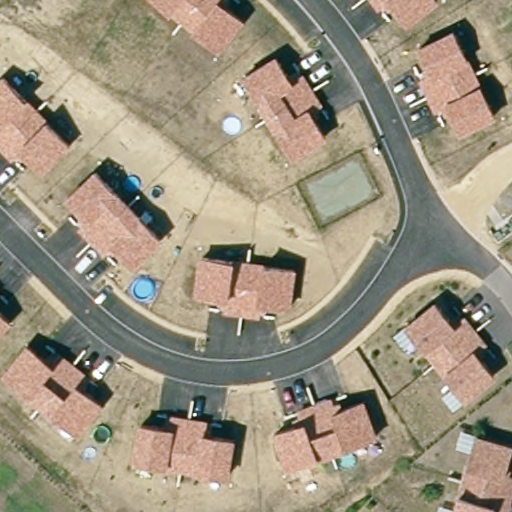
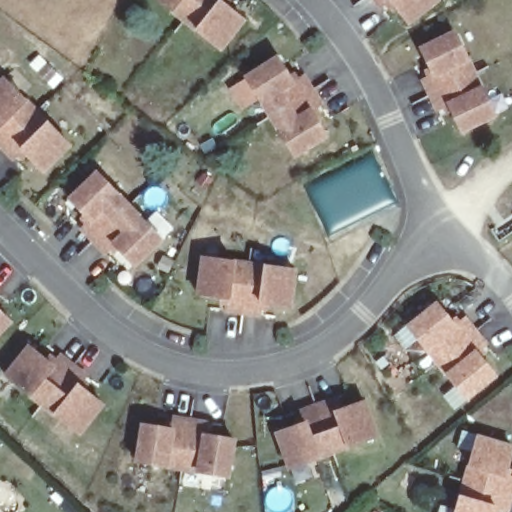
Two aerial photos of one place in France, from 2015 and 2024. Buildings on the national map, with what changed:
unchanged [(244,20),(222,48),(157,0),(220,0),(244,20)]
unchanged [(378,10),(371,0),(388,0),(378,10)]
unchanged [(439,3),(406,26),(390,0),(436,0),(439,3)]
unchanged [(496,117),(459,133),(445,104),(434,112),(420,79),(431,72),(419,46),(453,30),(496,117)]
unchanged [(305,73),(324,105),(312,109),(328,138),(293,159),(244,74),(278,54),(290,77),(305,73)]
unchanged [(41,174),(19,151),(10,162),(0,151),(0,79),(3,77),(70,145),(41,174)]
unchanged [(163,239),(133,267),(113,246),(104,256),(79,230),(85,217),(67,198),(95,171),(163,239)]
unchanged [(296,267),(292,308),(260,304),(261,319),(225,313),(227,300),(195,296),(202,257),(296,267)]
unchanged [(397,332),(408,322),(437,299),(456,322),(465,315),(476,328),(437,360),(418,335),(406,344),(397,332)]
unchanged [(0,335),(0,311),(11,323),(0,335)]
unchanged [(444,394),(456,385),(437,360),(476,328),(486,342),(476,349),(494,373),(465,397),(454,406),(444,394)]
unchanged [(46,357),(59,348),(86,374),(77,385),(103,405),(78,437),(4,376),(29,343),(46,357)]
unchanged [(334,404),(343,401),(344,408),(366,399),(378,437),(289,470),(275,433),(293,423),(292,418),(299,416),(299,408),(331,396),(334,404)]
unchanged [(170,415),(206,421),(203,433),(235,437),(229,475),(135,462),(140,423),(168,427),(170,415)]
unchanged [(507,476),(512,477),(512,495),(467,481),(476,451),(462,446),(466,432),(480,436),(512,446),(512,459),(507,476)]
unchanged [(458,512),(467,481),(512,495),(512,502),(509,512),(497,508),(496,512),(442,512),(444,507),(458,512)]

